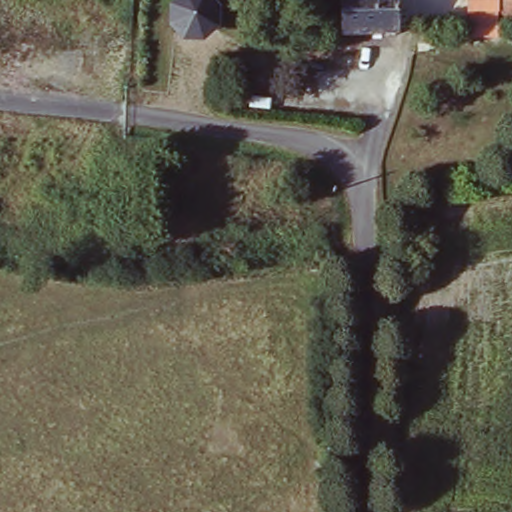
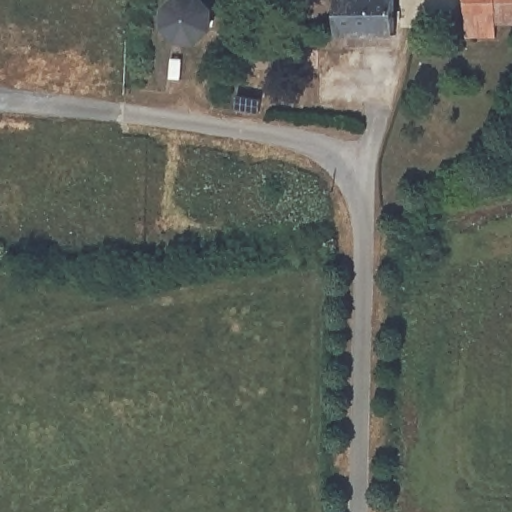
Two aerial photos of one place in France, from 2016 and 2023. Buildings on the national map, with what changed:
unchanged [(345,30),(345,0),(401,0),(400,30),(345,30)]
unchanged [(500,9),(500,20),(470,19),(470,0),(512,0),(512,9),(500,9)]
unchanged [(182,30),(177,21),(178,10),(186,4),(200,4),(206,15),(205,29),(192,32),(182,30)]

